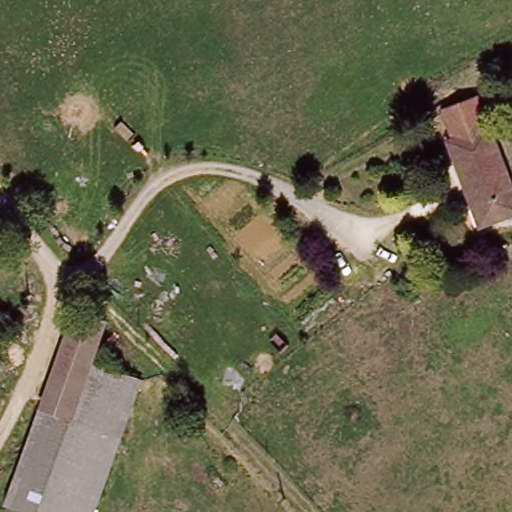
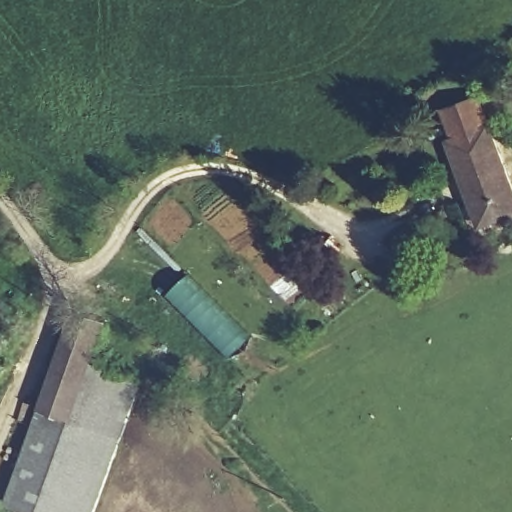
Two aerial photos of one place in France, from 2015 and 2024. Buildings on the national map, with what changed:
unchanged [(485,114),(512,183),(512,215),(483,226),(452,145),(457,144),(446,114),(481,101),(485,114)]
new [(230,358),(167,294),(189,274),(249,339),(230,358)]
unchanged [(77,315),(105,324),(90,363),(70,419),(45,409),(77,315)]
unchanged [(12,505),(20,480),(45,409),(70,419),(90,363),(140,382),(95,512),(32,512),(12,505)]

